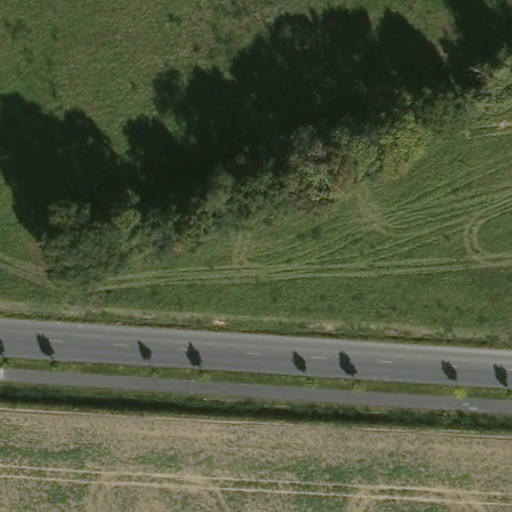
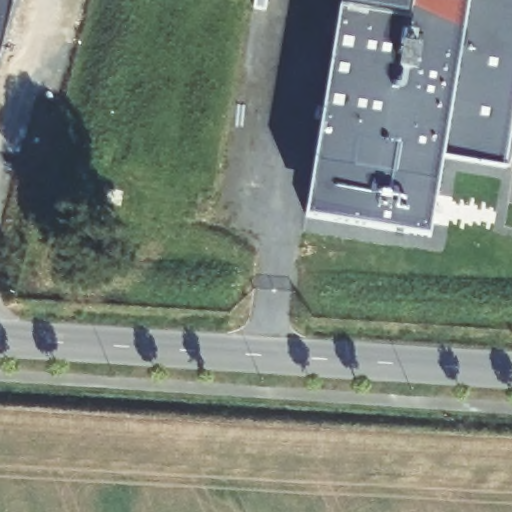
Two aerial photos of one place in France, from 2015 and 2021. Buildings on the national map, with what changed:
new [(0,48),(0,0),(12,0),(0,48)]
new [(341,0),(512,0),(512,124),(505,171),(442,161),(429,240),(306,220),(341,0)]

